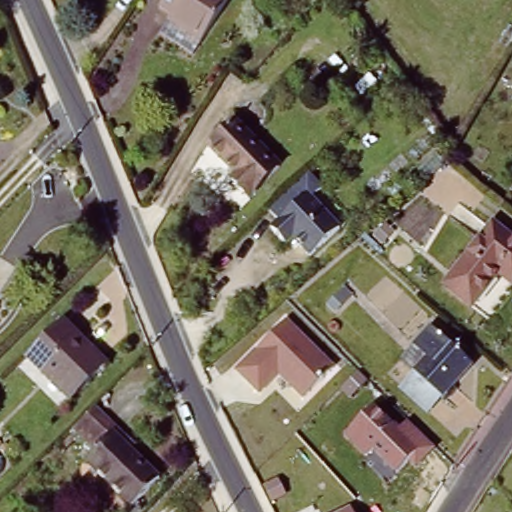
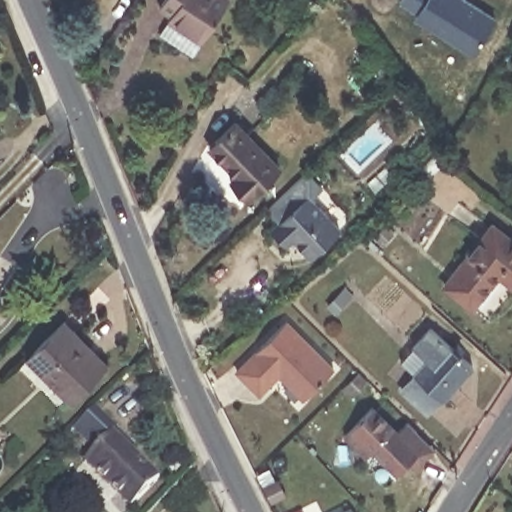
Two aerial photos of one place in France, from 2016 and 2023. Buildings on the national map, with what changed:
unchanged [(193,57),(167,41),(179,21),(160,8),(165,0),(229,0),(193,57)]
new [(403,0),(463,0),(495,19),(474,54),(416,19),(418,14),(401,4),(403,0)]
unchanged [(231,181),(237,175),(227,165),(210,147),(236,123),(252,139),(278,168),(247,199),(231,181)]
unchanged [(330,200),(319,210),(349,240),(319,269),(302,251),(297,256),(281,240),(287,234),(282,229),(276,223),(315,184),(324,193),(330,200)]
unchanged [(500,273),(475,305),(446,283),(494,222),(512,236),(512,282),(500,273)]
unchanged [(233,367),(287,318),(335,366),(302,400),(278,377),(260,396),(233,367)]
unchanged [(64,324),(106,366),(71,402),(28,359),(64,324)]
unchanged [(411,380),(416,375),(415,374),(404,364),(416,351),(433,332),(437,335),(445,343),(456,352),(461,347),(472,359),(467,364),(472,369),(442,400),(437,405),(429,414),(402,389),(411,380)]
unchanged [(375,407),(397,431),(407,422),(436,454),(417,473),(409,462),(397,475),(371,449),(362,457),(344,436),(375,407)]
unchanged [(135,512),(89,467),(101,454),(77,430),(97,410),(127,439),(137,448),(132,454),(162,483),(135,512)]
unchanged [(354,512),(343,512),(352,508),(354,512)]

